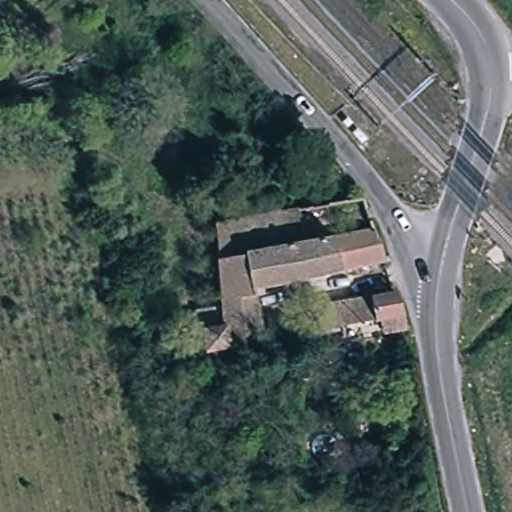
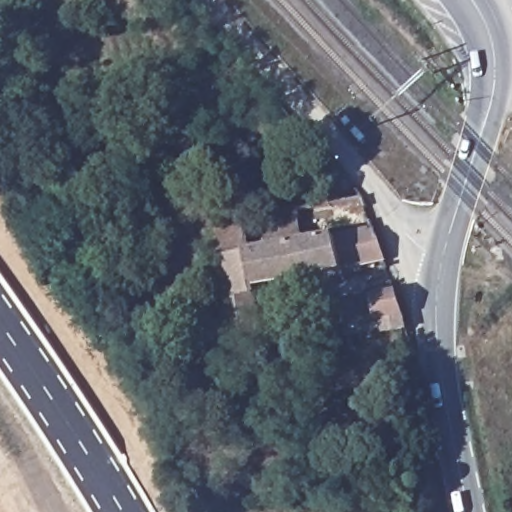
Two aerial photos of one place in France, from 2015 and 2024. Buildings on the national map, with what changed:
unchanged [(217,227),(299,212),(306,245),(375,230),(380,241),(387,264),(256,291),(266,344),(207,355),(204,341),(202,332),(199,315),(222,310),(217,227)]
unchanged [(392,284),(400,325),(379,328),(375,314),(317,325),(311,297),(392,284)]

